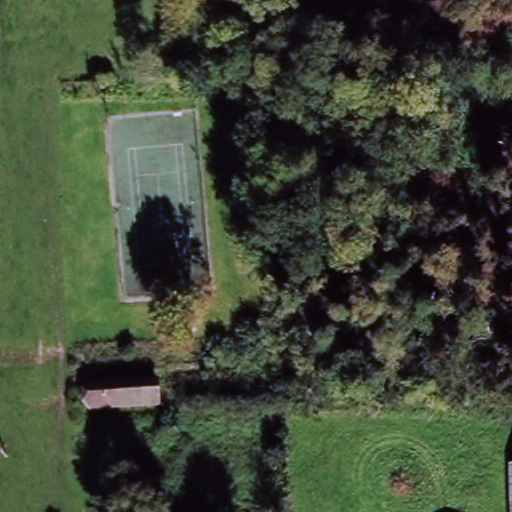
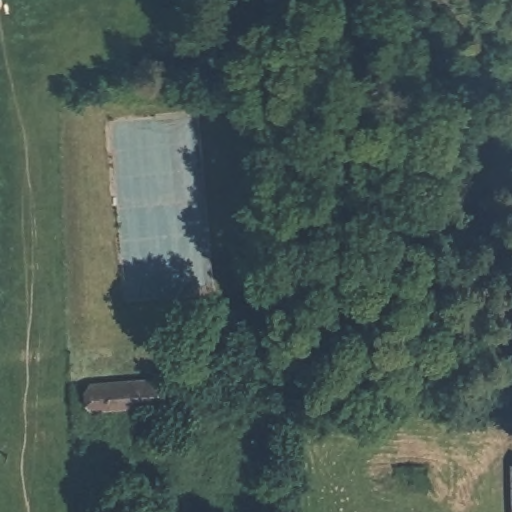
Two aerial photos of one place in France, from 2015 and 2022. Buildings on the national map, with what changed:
unchanged [(146,389),(146,384),(159,384),(159,388),(160,411),(94,414),(93,392),(146,389)]

